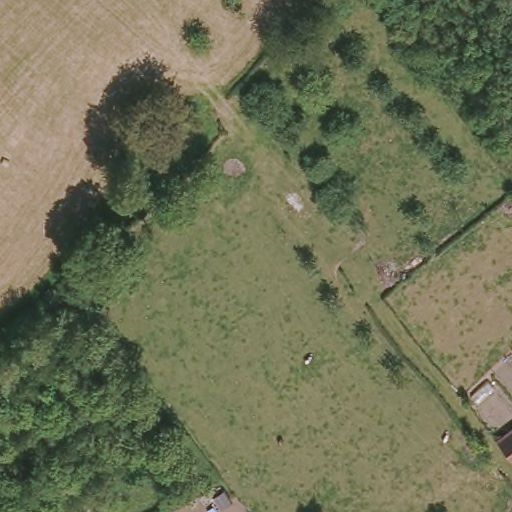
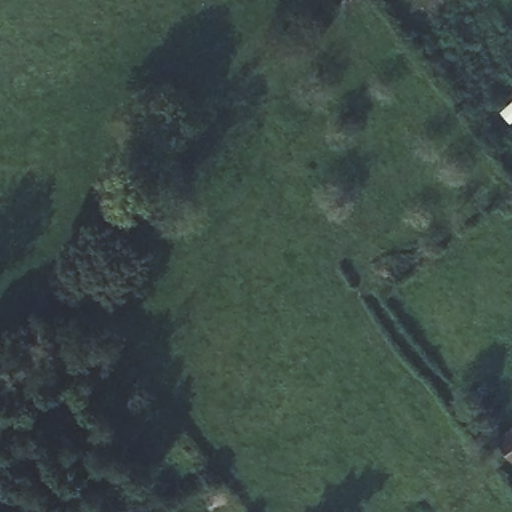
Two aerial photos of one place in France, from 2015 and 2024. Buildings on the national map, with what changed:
unchanged [(507,461),(496,445),(512,434),(512,457),(507,461)]

